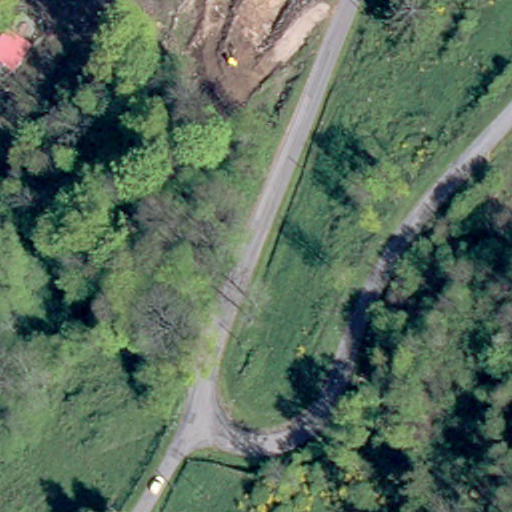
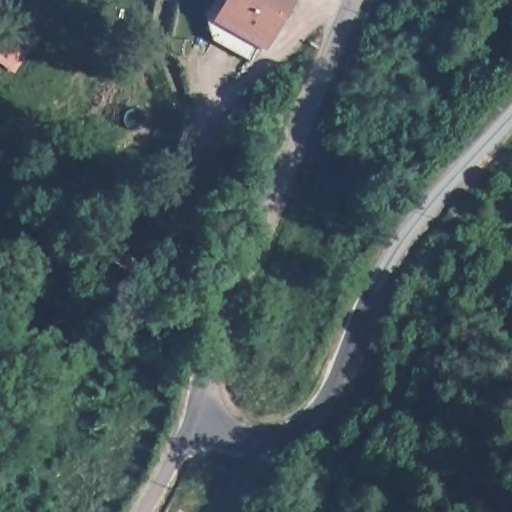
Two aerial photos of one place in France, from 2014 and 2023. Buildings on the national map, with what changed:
new [(264,51),(210,22),(221,0),(290,0),(264,51)]

